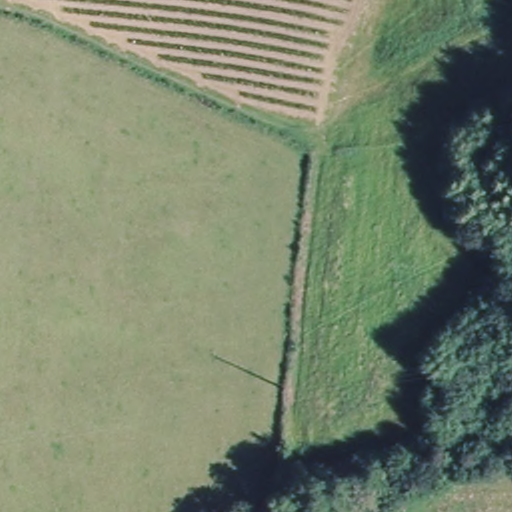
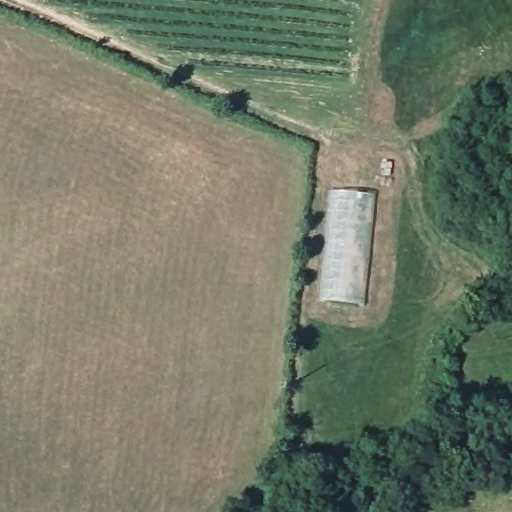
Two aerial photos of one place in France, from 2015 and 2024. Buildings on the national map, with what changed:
new [(328,187),(375,191),(364,304),(318,299),(328,187)]

